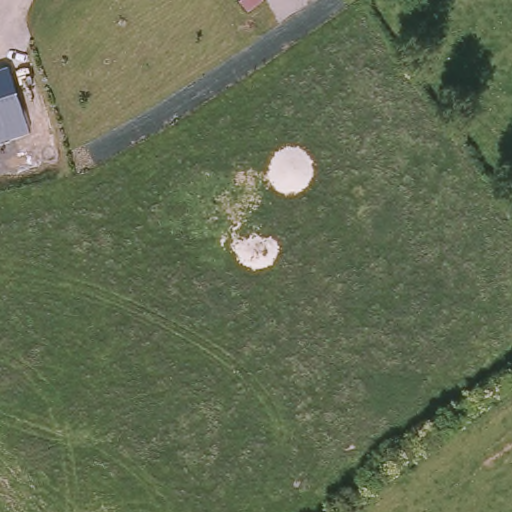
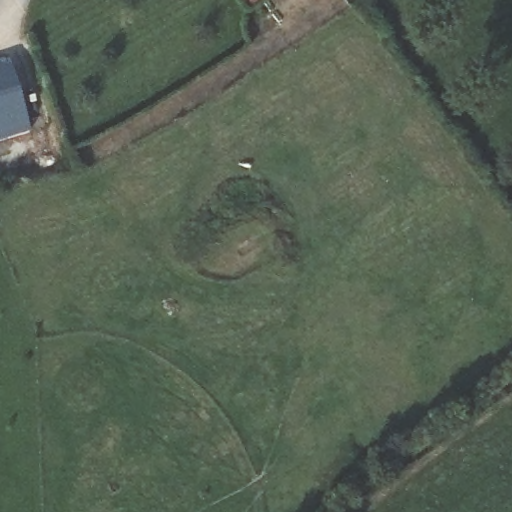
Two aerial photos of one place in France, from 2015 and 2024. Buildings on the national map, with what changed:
unchanged [(0,138),(0,65),(22,130),(0,138)]

